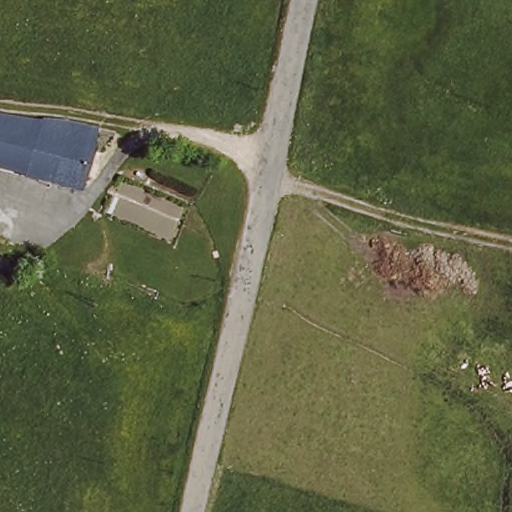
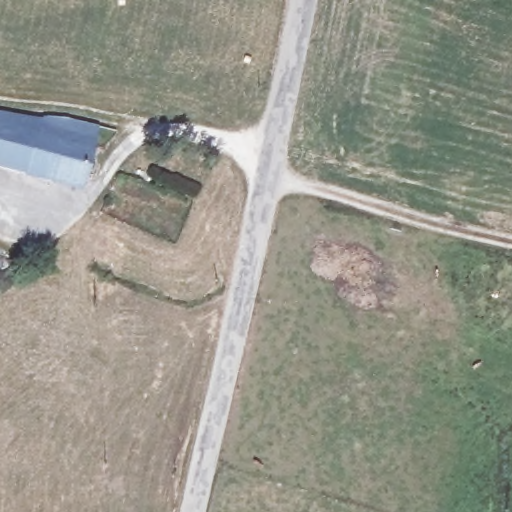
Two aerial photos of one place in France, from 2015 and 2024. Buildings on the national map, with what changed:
unchanged [(44,115),(98,123),(88,182),(0,170),(0,120),(43,126),(44,115)]

